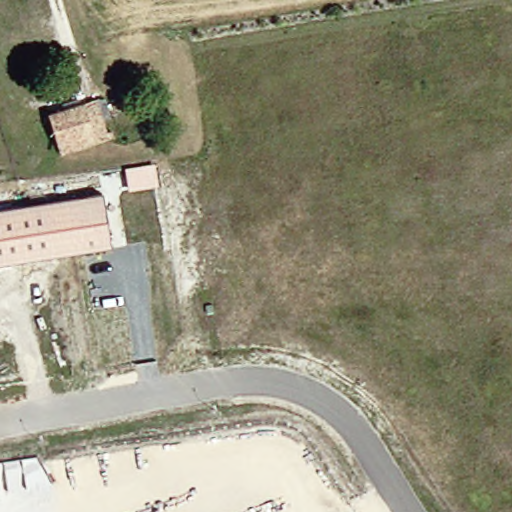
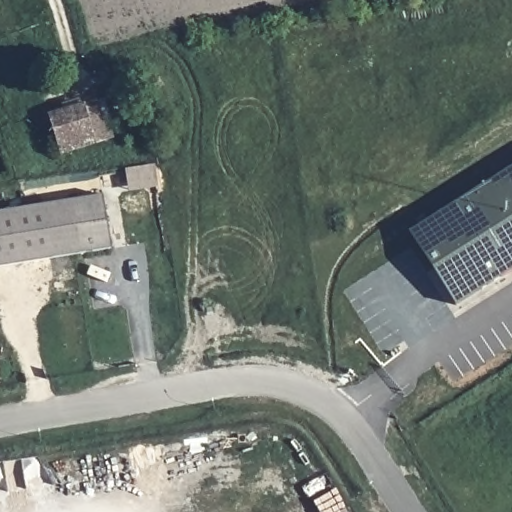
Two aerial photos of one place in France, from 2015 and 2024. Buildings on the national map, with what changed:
unchanged [(46,113),(89,107),(97,107),(105,145),(97,147),(51,153),(46,113)]
new [(512,170),(512,272),(456,308),(455,307),(411,237),(410,235),(512,170)]
unchanged [(103,195),(112,249),(0,267),(0,212),(103,195)]

